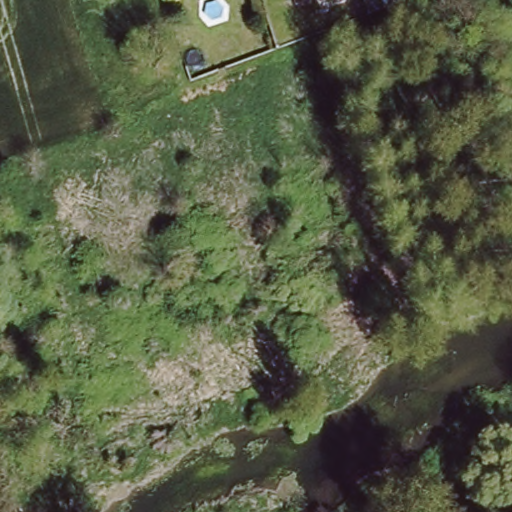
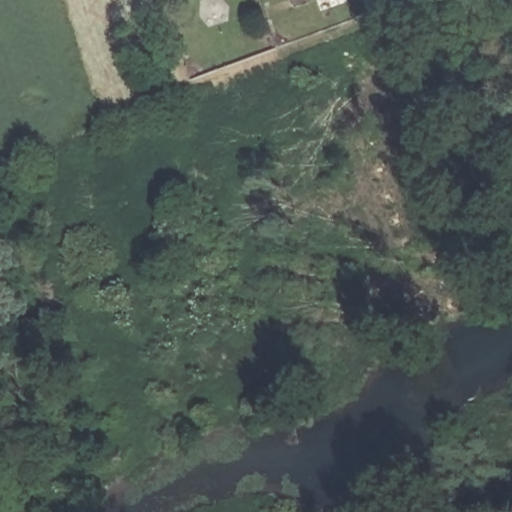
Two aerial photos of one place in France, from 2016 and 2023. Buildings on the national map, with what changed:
unchanged [(305,0),(293,5),(291,0),(305,0)]

